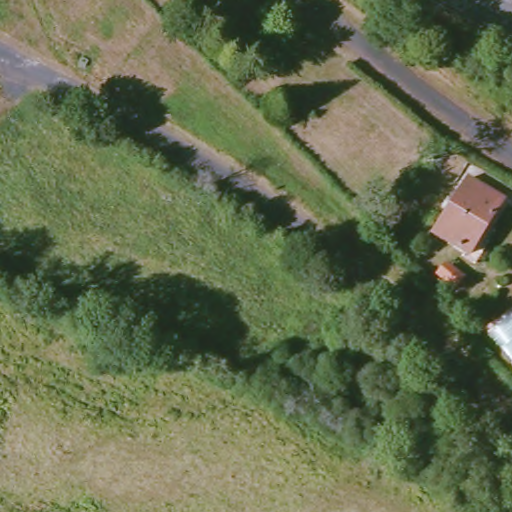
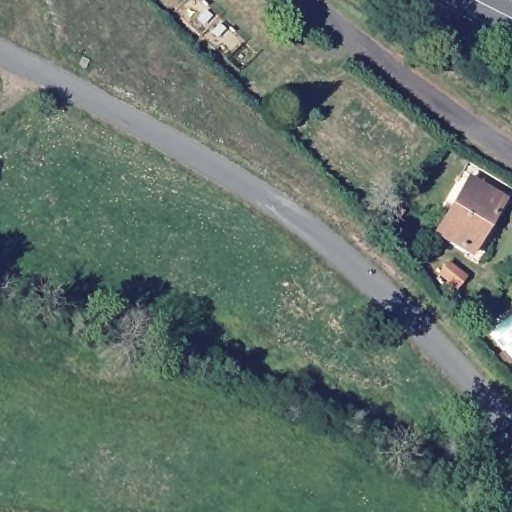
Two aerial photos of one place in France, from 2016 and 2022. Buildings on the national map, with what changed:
unchanged [(465,175),(501,199),(465,253),(430,229),(465,175)]
unchanged [(511,305),(512,307),(512,368),(484,329),(511,305)]

